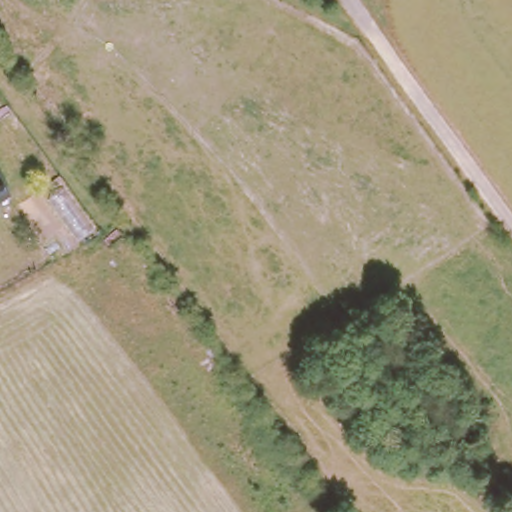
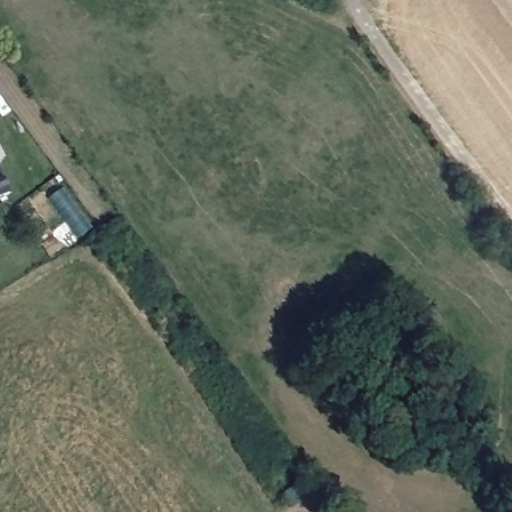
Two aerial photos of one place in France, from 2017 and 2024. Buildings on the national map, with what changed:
unchanged [(9,192),(0,196),(0,173),(9,192)]

